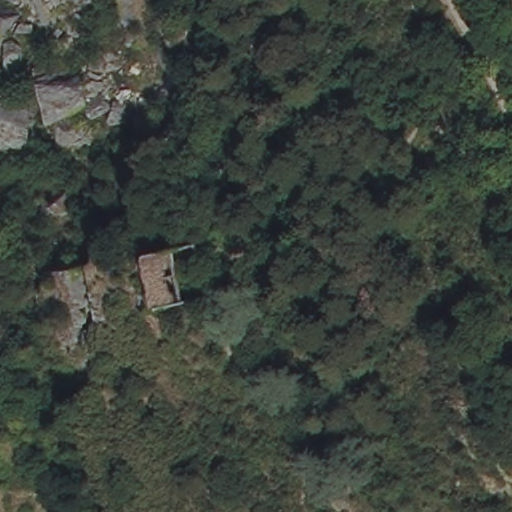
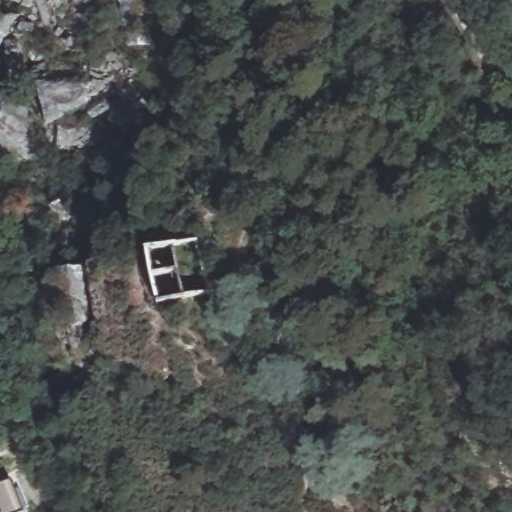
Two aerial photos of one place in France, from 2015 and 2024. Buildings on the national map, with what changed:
unchanged [(29,67),(7,66),(10,42),(0,41),(0,0),(21,0),(29,67)]
unchanged [(40,0),(70,0),(75,14),(48,22),(40,0)]
unchanged [(40,142),(1,140),(4,91),(42,94),(43,78),(92,75),(95,107),(50,113),(40,142)]
unchanged [(205,234),(217,291),(157,301),(147,244),(205,234)]
unchanged [(78,262),(87,324),(64,325),(57,264),(78,262)]
new [(12,480),(23,510),(18,512),(0,512),(0,485),(12,480)]

